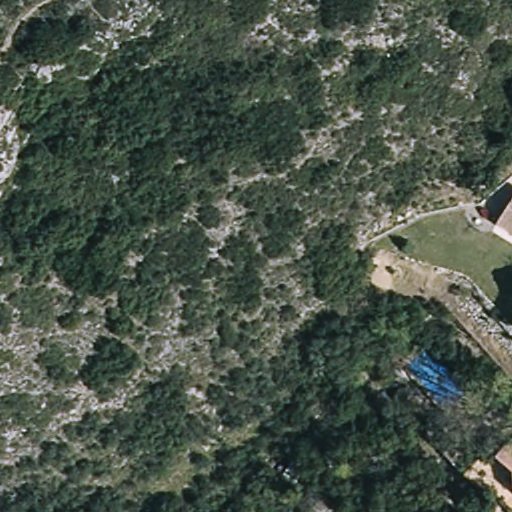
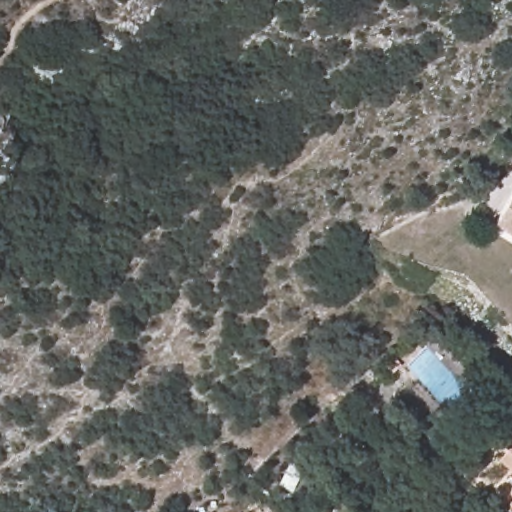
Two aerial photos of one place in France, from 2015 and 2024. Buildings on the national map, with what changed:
unchanged [(512,203),(512,240),(495,230),(512,203)]
unchanged [(505,446),(512,446),(512,472),(495,457),(505,446)]

